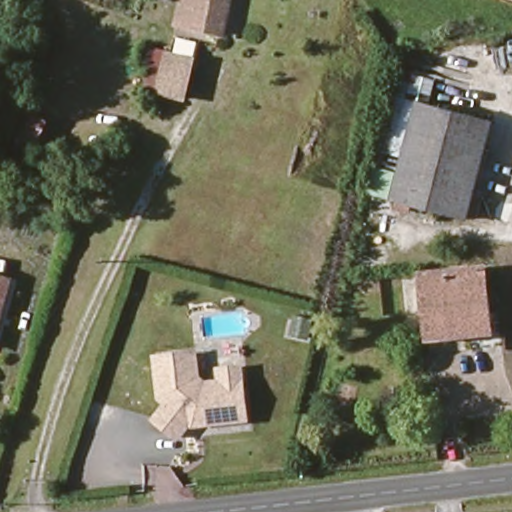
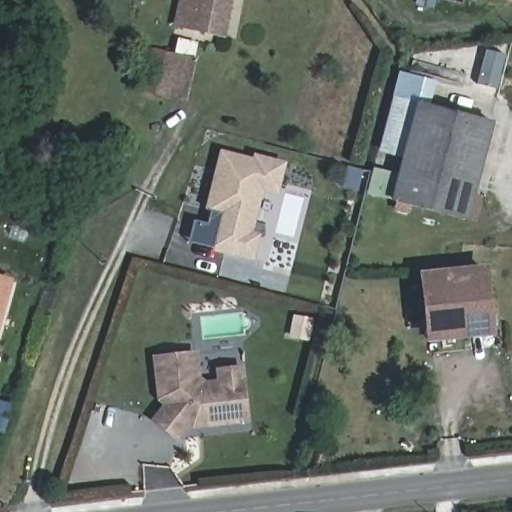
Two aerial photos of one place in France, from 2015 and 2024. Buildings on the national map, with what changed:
unchanged [(214,31),(170,20),(174,0),(221,0),(214,31)]
unchanged [(144,87),(157,45),(175,49),(174,59),(194,66),(184,98),(144,87)]
unchanged [(400,205),(426,103),(491,121),(468,221),(400,205)]
new [(29,113),(47,121),(30,157),(12,149),(29,113)]
new [(278,195),(263,191),(253,231),(260,233),(254,262),(212,251),(214,248),(188,241),(194,220),(207,224),(211,211),(205,209),(221,149),(252,157),(254,152),(287,161),(278,195)]
unchanged [(432,340),(427,277),(489,272),(494,333),(432,340)]
unchanged [(15,280),(0,334),(0,276),(15,280)]
unchanged [(245,419),(206,423),(202,420),(196,421),(192,418),(176,438),(154,420),(166,404),(165,398),(160,398),(155,357),(194,353),(197,378),(204,384),(241,380),(245,419)]

